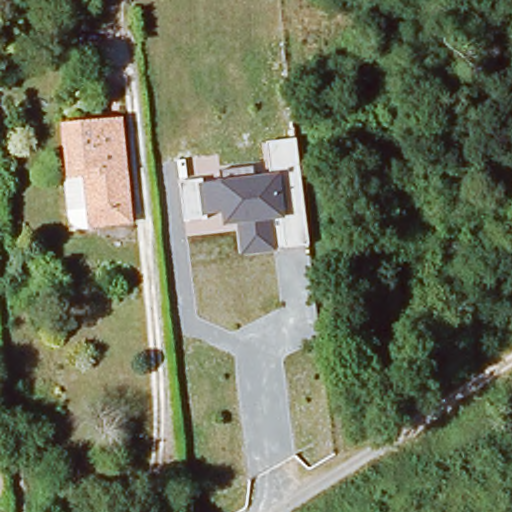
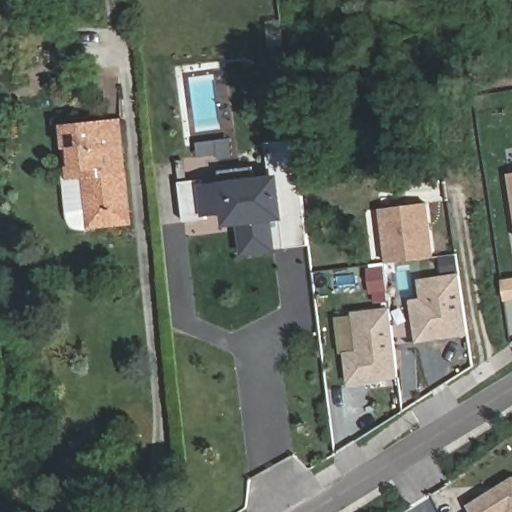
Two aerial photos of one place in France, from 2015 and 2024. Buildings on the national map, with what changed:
unchanged [(98,223),(96,212),(92,174),(76,175),(71,127),(124,122),(134,208),(135,220),(98,223)]
unchanged [(203,184),(221,182),(221,171),(254,167),(255,177),(271,175),(268,142),(297,139),(310,245),(277,251),(242,255),(238,225),(225,227),(223,214),(207,216),(207,220),(185,222),(180,182),(203,179),(203,184)]
new [(508,174),(512,173),(512,204),(508,174)]
new [(425,201),(431,255),(385,261),(379,207),(425,201)]
new [(420,297),(417,278),(457,272),(466,332),(415,340),(410,299),(420,297)]
new [(357,351),(352,312),(390,307),(399,376),(350,382),(345,352),(357,351)]
new [(473,512),(470,506),(512,480),(512,512),(473,512)]

